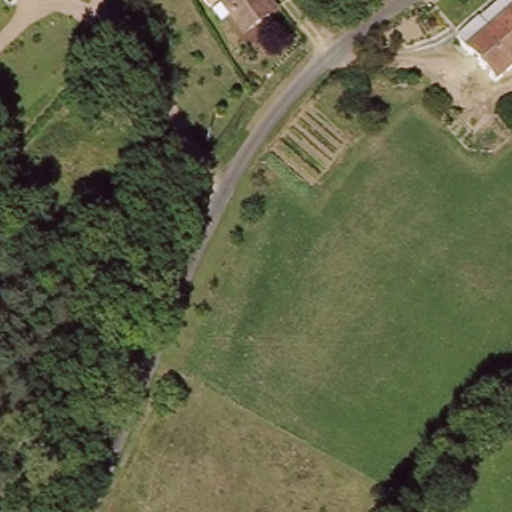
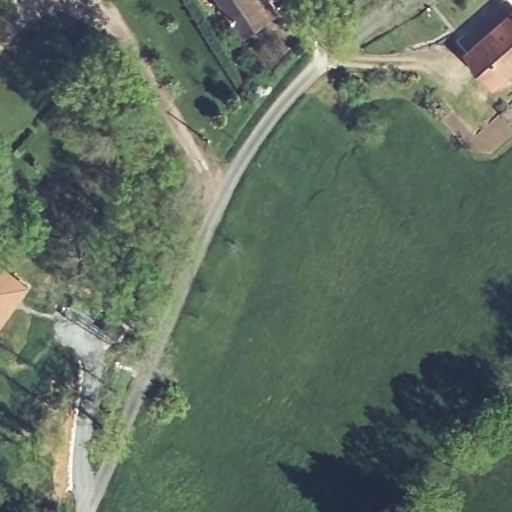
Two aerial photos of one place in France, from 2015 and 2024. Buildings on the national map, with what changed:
unchanged [(232,20),(216,0),(255,0),(257,2),(275,24),(251,44),(232,20)]
unchanged [(468,50),(512,17),(512,68),(492,83),(468,50)]
new [(33,285),(0,329),(0,260),(33,285)]

